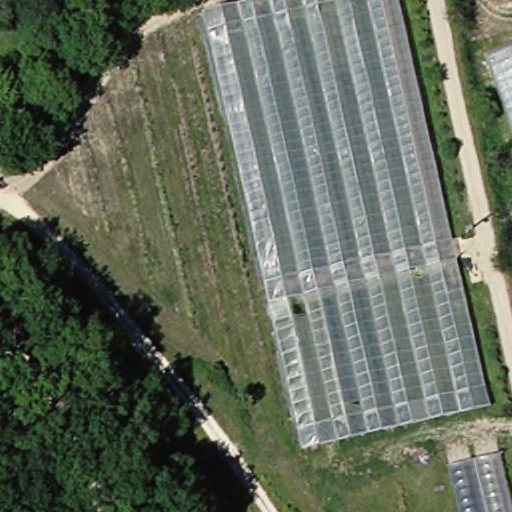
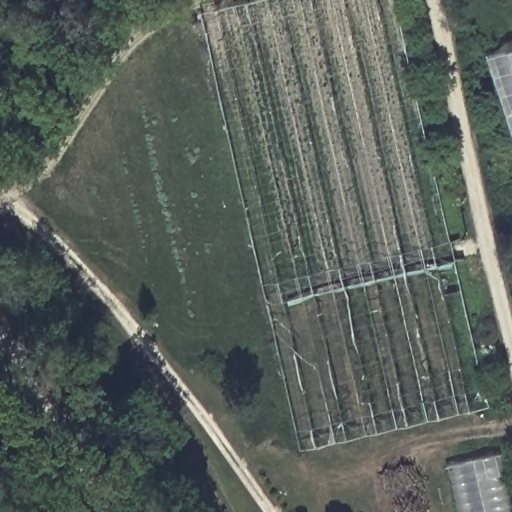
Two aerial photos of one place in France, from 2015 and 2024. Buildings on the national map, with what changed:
demolished [(268,294),(200,10),(247,0),(401,0),(459,260),(491,409),(303,455),(268,294)]
unchanged [(487,55),(512,47),(512,129),(487,55)]
unchanged [(512,496),(512,512),(457,512),(447,464),(502,455),(512,496)]

